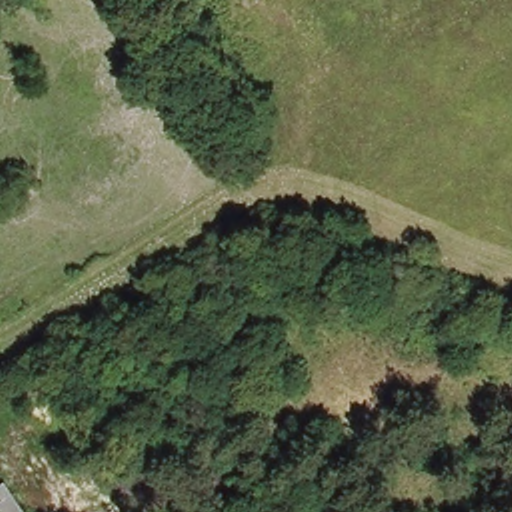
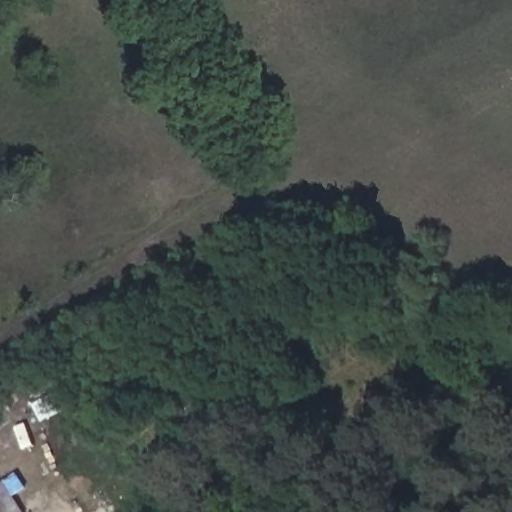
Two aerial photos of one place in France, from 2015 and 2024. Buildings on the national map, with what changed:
unchanged [(0,483),(1,482),(23,512),(3,512),(0,507),(0,483)]

